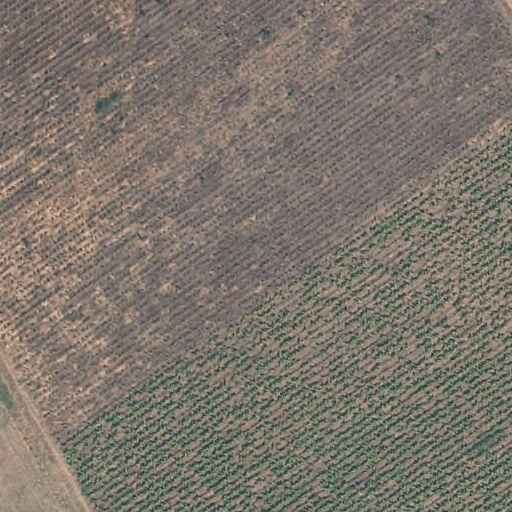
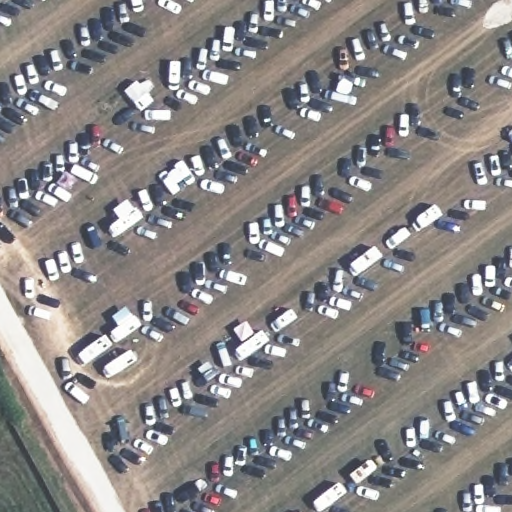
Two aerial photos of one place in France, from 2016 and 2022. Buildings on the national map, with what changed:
[]

